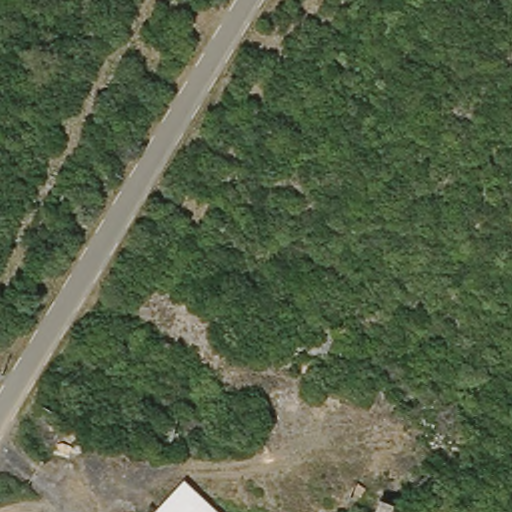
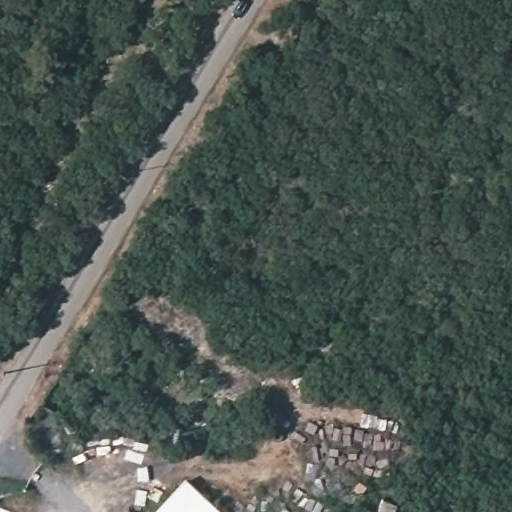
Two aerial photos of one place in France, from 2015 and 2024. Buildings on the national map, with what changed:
unchanged [(217,512),(154,512),(180,481),(217,512)]
unchanged [(496,509),(499,493),(512,496),(512,512),(477,512),(477,510),(496,509)]

